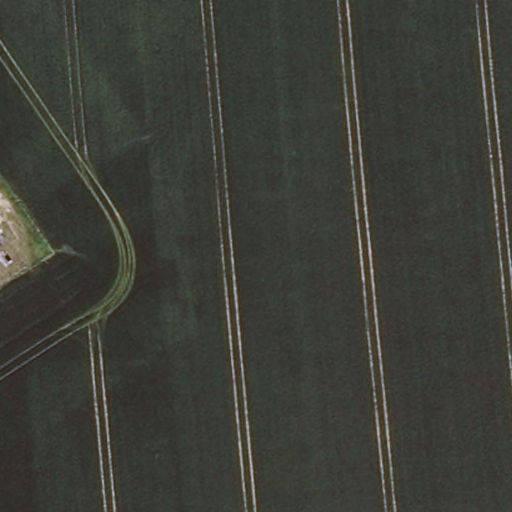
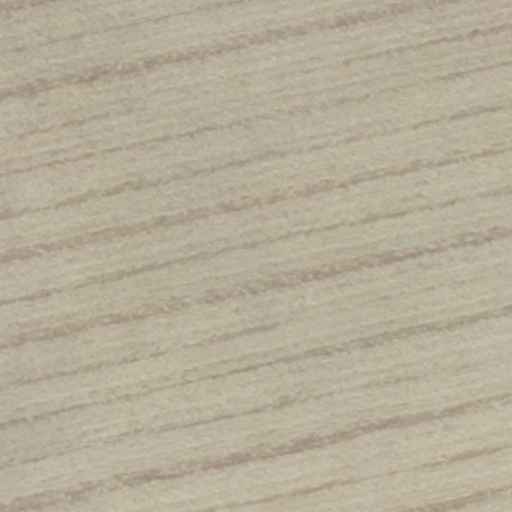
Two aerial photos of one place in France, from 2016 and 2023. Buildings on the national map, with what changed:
[]

